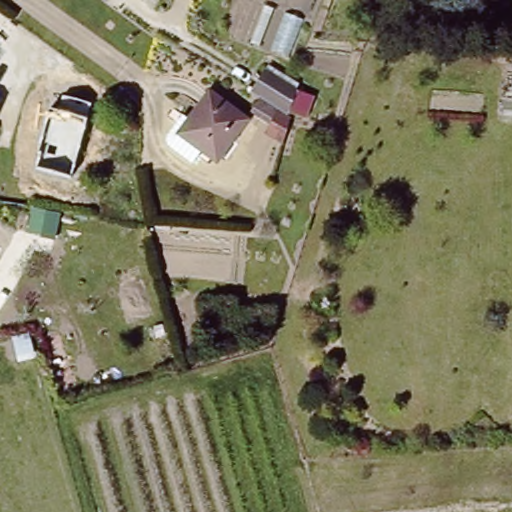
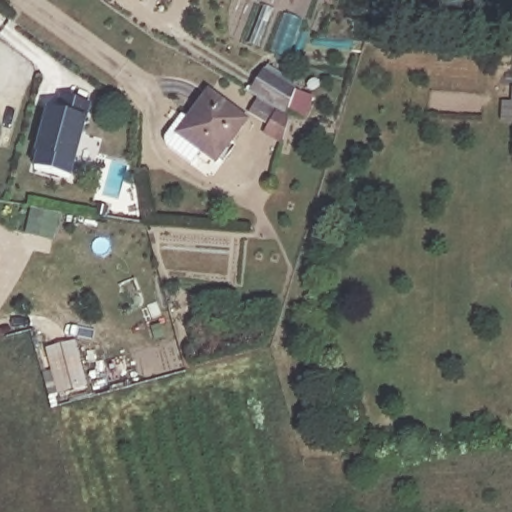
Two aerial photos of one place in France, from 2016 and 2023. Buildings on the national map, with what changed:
unchanged [(169,0),(171,0),(171,1),(169,0)]
unchanged [(268,72),(299,91),(291,117),(264,100),(254,94),(268,72)]
unchanged [(166,142),(170,136),(186,115),(191,119),(211,92),(249,121),(218,164),(203,152),(199,157),(194,164),(166,142)]
new [(41,154),(39,154),(51,110),(60,112),(64,97),(93,105),(72,179),(37,170),(41,154)]

